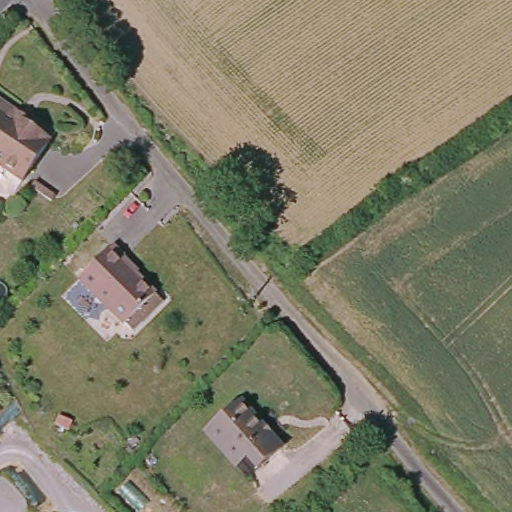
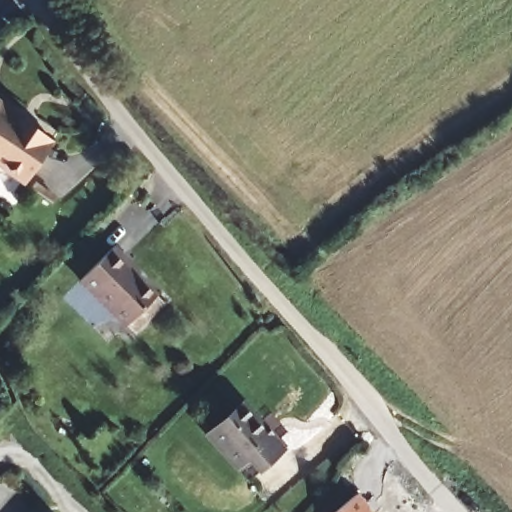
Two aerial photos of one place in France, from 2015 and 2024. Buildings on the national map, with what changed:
unchanged [(0,98),(3,100),(7,96),(18,107),(13,113),(52,150),(23,177),(0,155),(0,98)]
unchanged [(134,335),(125,327),(82,281),(115,249),(127,260),(123,266),(156,298),(164,305),(134,335)]
unchanged [(237,471),(204,434),(239,404),(252,417),(257,413),(268,425),(262,430),(283,453),(258,475),(248,483),(237,471)]
new [(336,512),(354,496),(368,512),(336,512)]

